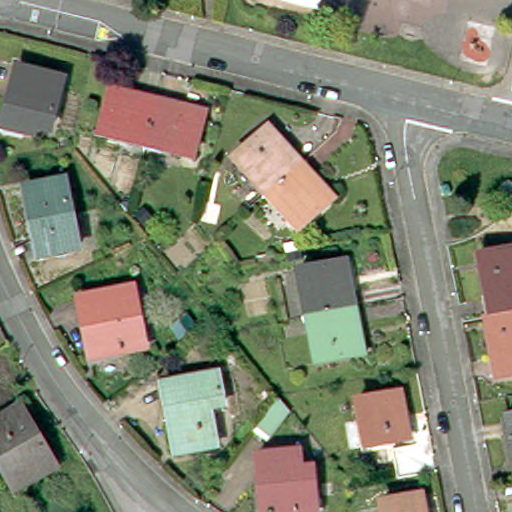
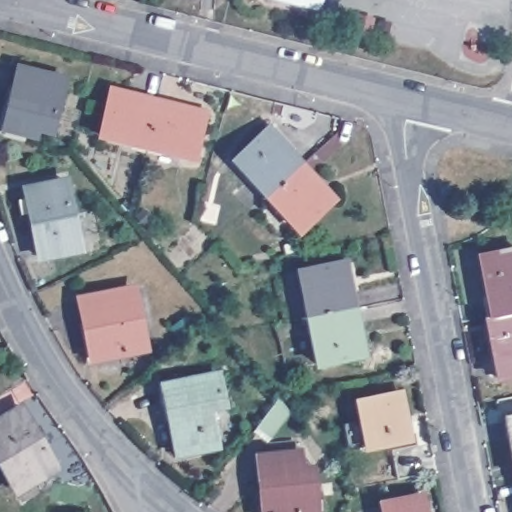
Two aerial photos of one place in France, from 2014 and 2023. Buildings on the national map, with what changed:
unchanged [(43,130),(6,120),(20,69),(56,77),(43,130)]
unchanged [(133,140),(101,131),(111,90),(113,85),(143,92),(158,96),(147,139),(134,135),(133,140)]
unchanged [(173,100),(204,109),(203,114),(192,155),(161,147),(162,142),(147,139),(158,96),(173,100)]
unchanged [(258,182),(236,159),(265,130),(271,125),(293,148),(304,160),(272,190),(261,180),(258,182)]
unchanged [(314,170),(336,195),(331,200),(301,228),(279,205),(282,201),(272,190),(304,160),(314,170)]
unchanged [(74,242),(34,249),(26,197),(64,191),(74,242)]
unchanged [(477,251),(512,245),(512,308),(488,312),(477,251)]
unchanged [(314,313),(311,299),(305,300),(299,267),(340,261),(348,260),(354,290),(356,305),(329,310),(314,313)]
unchanged [(89,364),(72,296),(138,286),(150,350),(89,364)]
unchanged [(357,351),(316,359),(311,330),(317,329),(314,313),(329,310),(356,305),(359,321),(365,350),(357,351)]
unchanged [(512,308),(512,369),(493,372),(483,313),(488,312),(512,308)]
unchanged [(173,457),(151,385),(220,371),(227,405),(218,409),(221,447),(173,457)]
unchanged [(403,440),(366,447),(355,393),(394,386),(403,440)]
unchanged [(278,396),(292,406),(271,432),(258,422),(278,396)]
unchanged [(54,463),(17,484),(0,454),(0,422),(22,410),(54,463)]
unchanged [(512,416),(512,454),(506,417),(512,416)]
unchanged [(305,512),(262,512),(255,465),(267,463),(266,452),(290,449),(292,458),(294,458),(307,473),(313,510),(305,512)]
unchanged [(421,512),(382,512),(380,503),(419,497),(421,512)]

